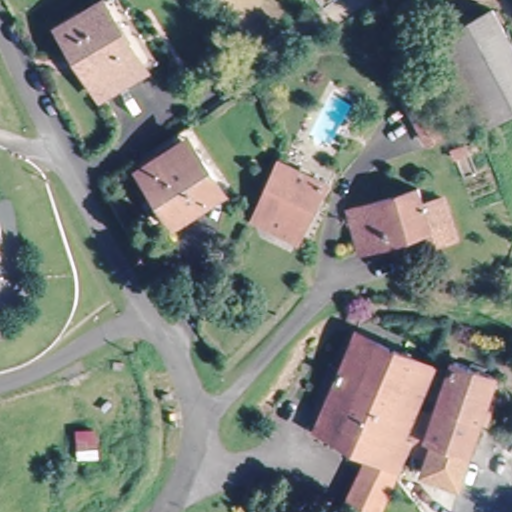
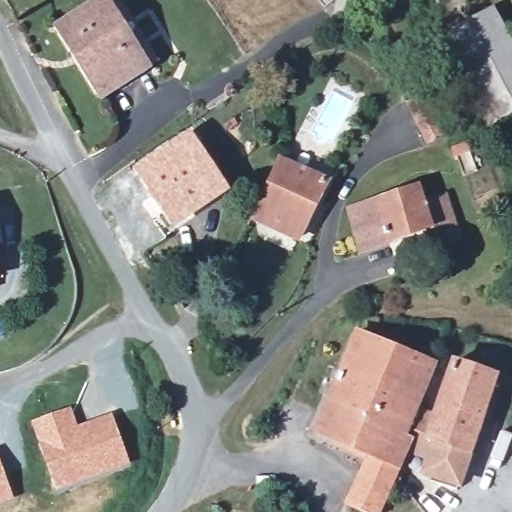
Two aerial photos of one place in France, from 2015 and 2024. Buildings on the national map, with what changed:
unchanged [(112,0),(150,59),(139,67),(97,1),(98,0),(112,0)]
unchanged [(316,0),(343,0),(327,13),(316,0)]
unchanged [(139,67),(96,96),(54,29),(97,1),(139,67)]
unchanged [(512,108),(480,125),(430,35),(490,2),(512,44),(512,108)]
unchanged [(433,129),(417,137),(400,98),(417,92),(433,129)]
unchanged [(220,195),(171,225),(141,174),(190,145),(220,195)]
unchanged [(323,184),(294,239),(251,220),(281,165),(323,184)]
unchanged [(416,206),(436,200),(451,240),(430,246),(423,228),(355,251),(340,214),(410,190),(416,206)]
unchanged [(411,414),(402,437),(406,438),(396,468),(393,477),(379,512),(342,512),(365,457),(311,432),(352,335),(429,370),(411,414)]
unchanged [(432,422),(450,367),(491,378),(457,493),(429,485),(431,478),(424,477),(430,459),(407,453),(410,440),(406,438),(402,437),(411,414),(432,422)]
new [(71,405),(78,424),(112,412),(131,465),(56,490),(30,420),(71,405)]
new [(14,498),(0,503),(0,459),(14,498)]

